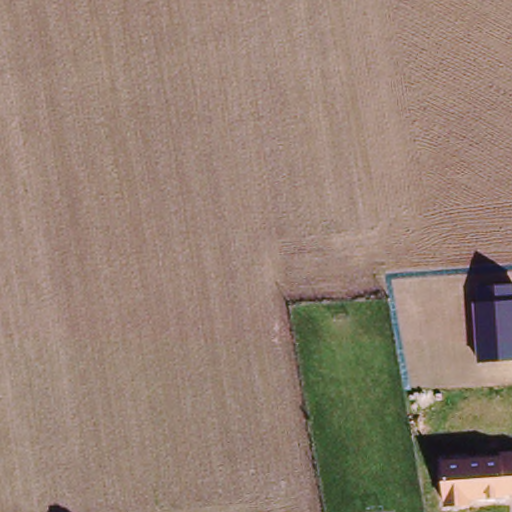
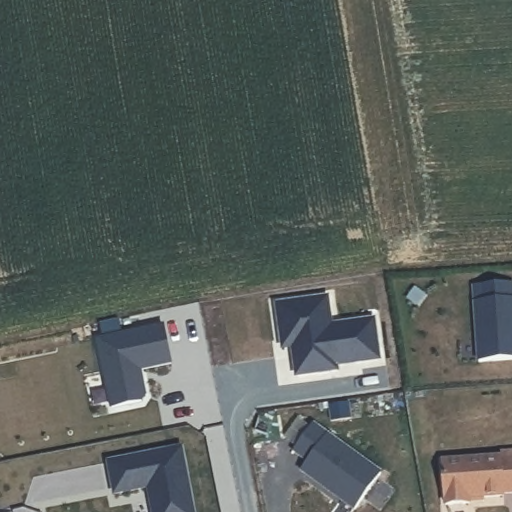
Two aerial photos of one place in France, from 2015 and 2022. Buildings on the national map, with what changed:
unchanged [(474,301),(479,300),(477,285),(512,283),(512,359),(477,361),(474,301)]
new [(375,365),(357,368),(333,372),(334,377),(293,384),(287,346),(277,348),(272,312),(322,304),(327,333),(350,329),(370,326),(375,365)]
new [(172,329),(179,368),(144,374),(145,380),(149,383),(152,400),(149,404),(118,410),(106,340),(172,329)]
new [(287,346),(289,355),(279,356),(277,348),(287,346)]
new [(305,464),(292,453),(312,427),(378,479),(353,512),(348,512),(299,473),(305,464)]
unchanged [(440,461),(502,456),(502,452),(512,452),(512,496),(510,496),(470,499),(470,504),(444,505),(440,461)]
new [(187,454),(199,512),(158,512),(157,505),(160,505),(157,493),(120,500),(114,469),(187,454)]

